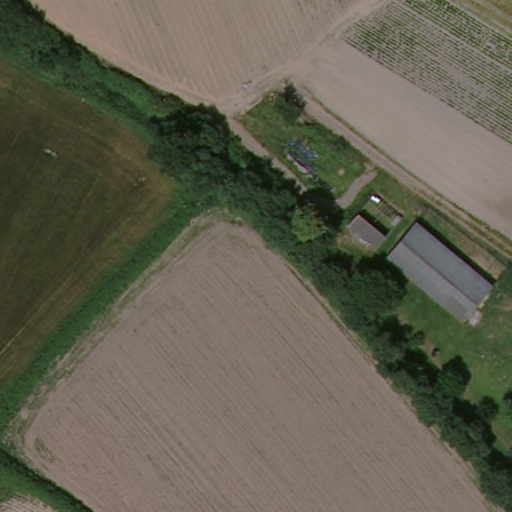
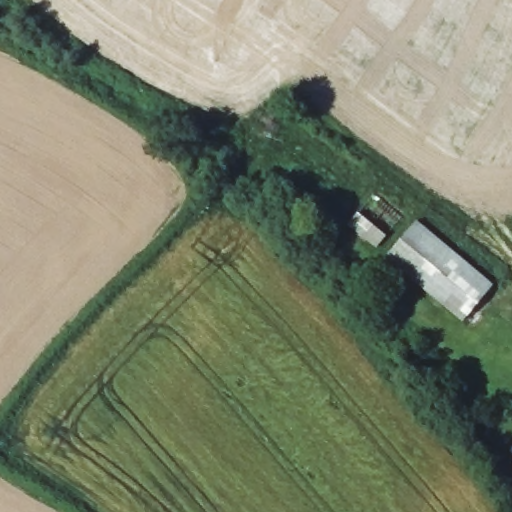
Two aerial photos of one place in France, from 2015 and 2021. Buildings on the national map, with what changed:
unchanged [(501,281),(466,321),(386,256),(420,215),(501,281)]
unchanged [(509,449),(512,447),(512,455),(509,449)]

